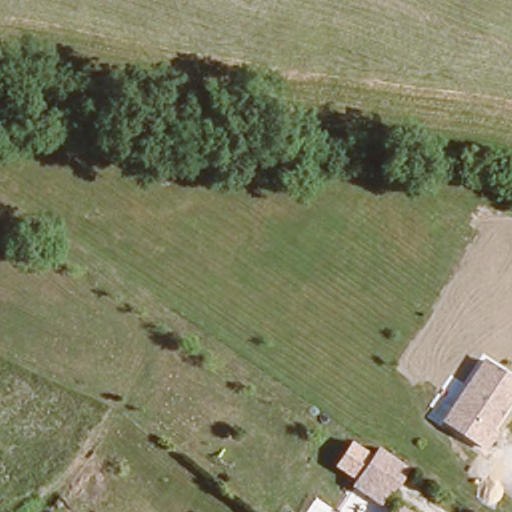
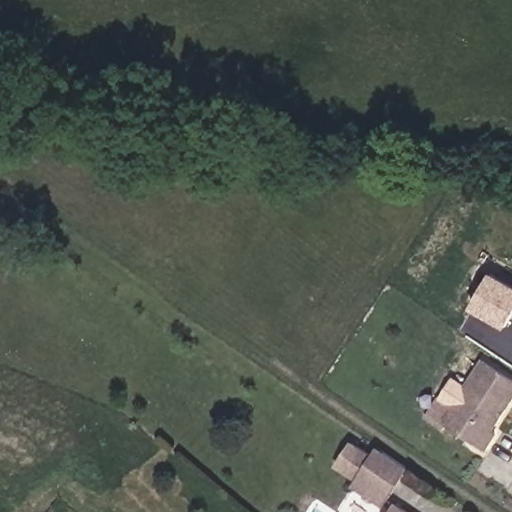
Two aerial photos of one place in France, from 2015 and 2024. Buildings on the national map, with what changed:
new [(473,307),(493,272),(512,283),(512,319),(507,327),(473,307)]
unchanged [(512,394),(504,406),(500,403),(496,409),(500,411),(490,426),(494,429),(484,444),(443,416),(484,356),(512,375),(512,394)]
unchanged [(356,485),(360,479),(381,449),(410,468),(388,500),(385,504),(356,485)]
unchanged [(392,512),(397,504),(408,512),(392,512)]

